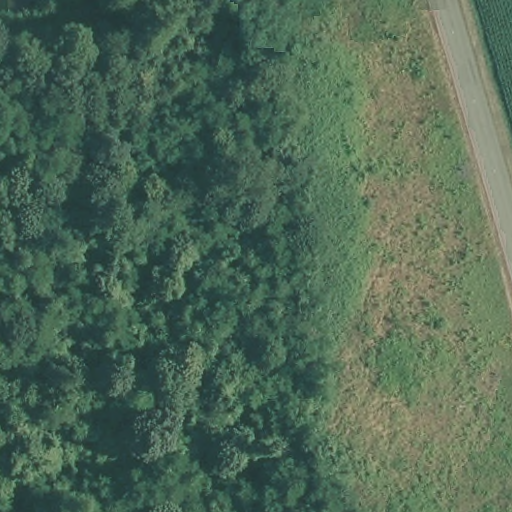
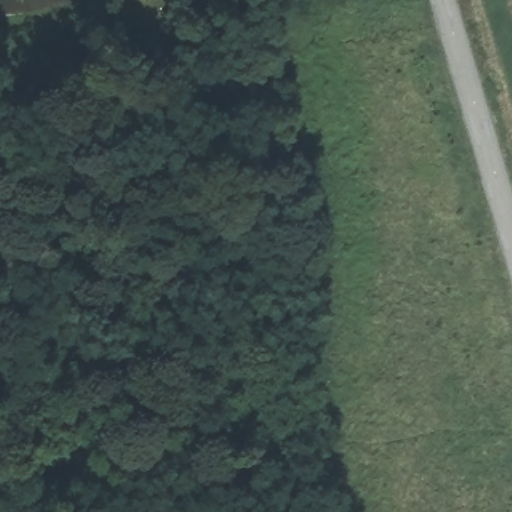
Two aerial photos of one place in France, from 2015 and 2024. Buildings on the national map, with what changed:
[]

